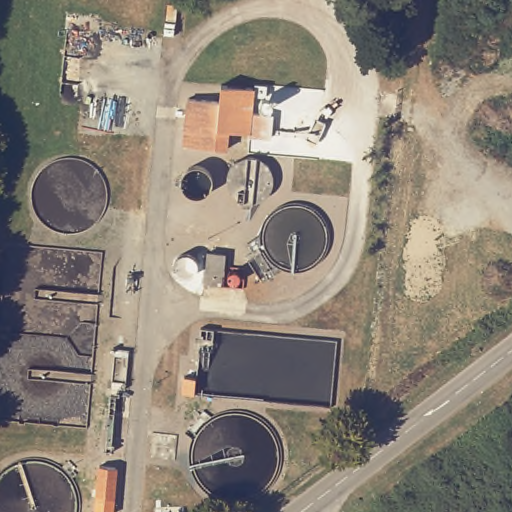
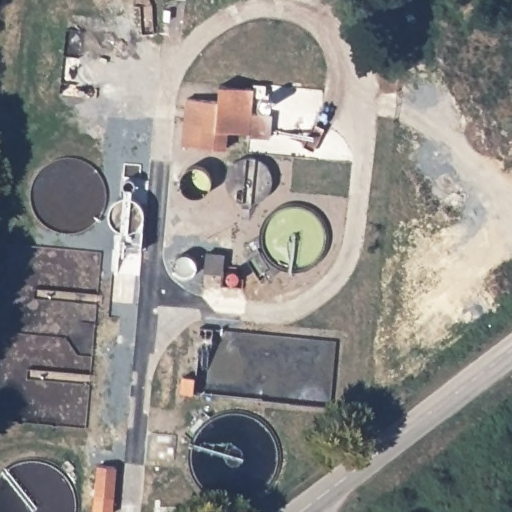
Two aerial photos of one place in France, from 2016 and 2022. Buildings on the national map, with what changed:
unchanged [(186,94),(218,97),(219,81),(252,83),(250,109),(270,111),(268,136),(247,134),(248,130),(228,128),(226,145),(183,142),(186,94)]
unchanged [(212,275),(214,259),(232,261),(231,274),(230,276),(212,275)]
unchanged [(182,375),(195,376),(194,394),(180,393),(182,375)]
unchanged [(115,467),(111,512),(95,512),(99,465),(115,467)]

